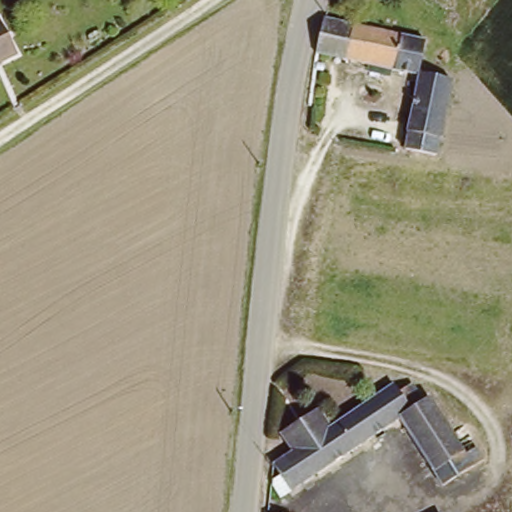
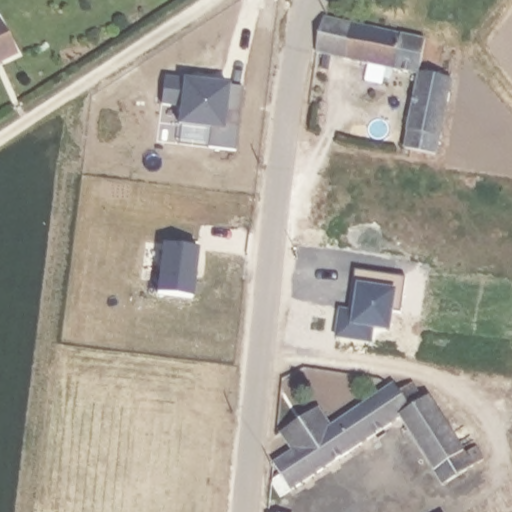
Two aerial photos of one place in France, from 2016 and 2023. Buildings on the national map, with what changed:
unchanged [(425,36),(418,72),(317,50),(325,13),(425,36)]
unchanged [(0,17),(16,52),(0,60),(0,17)]
unchanged [(450,79),(437,135),(410,128),(406,127),(418,72),(450,79)]
new [(190,81),(213,84),(243,88),(235,151),(208,148),(211,128),(179,124),(181,106),(161,104),(165,78),(190,81)]
new [(163,244),(198,249),(192,298),(157,294),(163,244)]
new [(334,337),(338,310),(352,312),(356,287),(350,286),(353,270),(404,278),(398,313),(390,312),(387,330),(371,328),(369,342),(334,337)]
new [(350,286),(356,287),(352,312),(346,311),(350,286)]
unchanged [(478,444),(487,458),(445,486),(403,418),(280,497),(270,483),(284,474),(275,460),(292,449),(281,431),(320,407),(330,423),(396,381),(402,390),(415,382),(426,399),(431,396),(468,451),(478,444)]
unchanged [(267,512),(267,511),(277,512),(267,512)]

